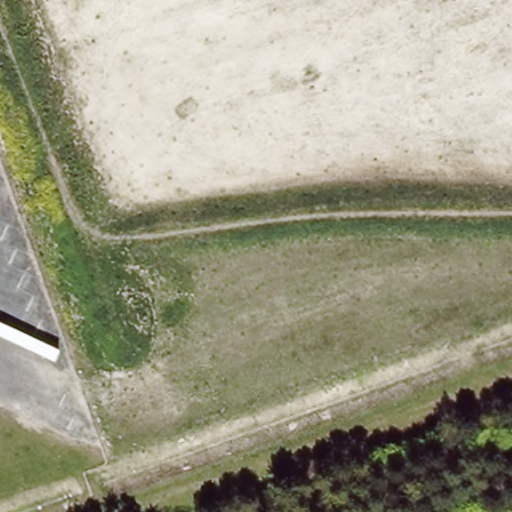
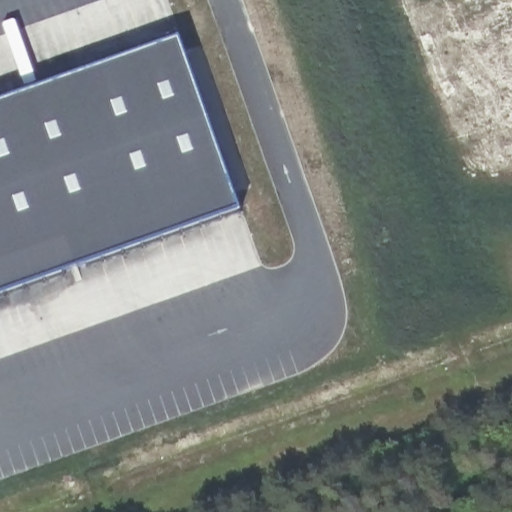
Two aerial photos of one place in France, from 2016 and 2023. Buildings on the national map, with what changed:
new [(240,209),(0,294),(0,102),(180,38),(240,209)]

